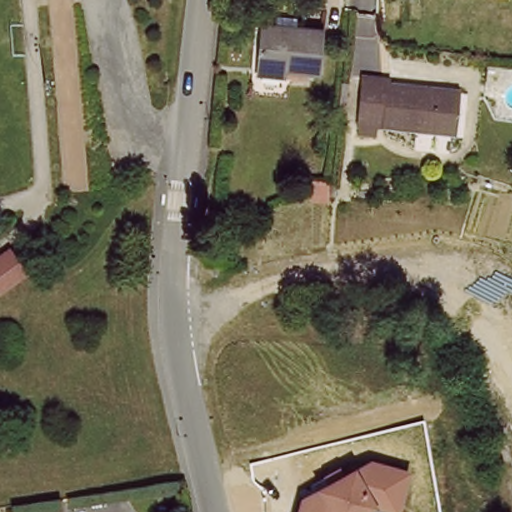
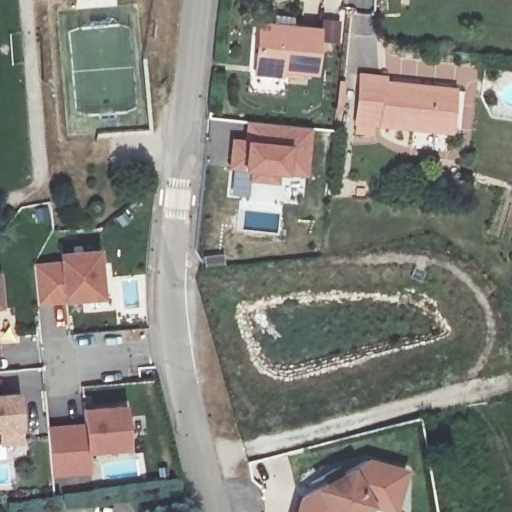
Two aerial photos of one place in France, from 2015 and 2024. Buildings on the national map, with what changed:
unchanged [(257,34),(317,32),(316,74),(286,74),(256,75),(257,34)]
unchanged [(391,80),(390,85),(461,95),(456,134),(361,121),(368,77),(391,80)]
new [(244,139),(247,120),(313,129),(307,178),(281,175),(279,184),(246,180),(246,172),(227,169),(231,139),(244,139)]
new [(59,259),(58,252),(101,248),(104,299),(63,302),(38,306),(35,263),(59,259)]
demolished [(12,253),(27,274),(2,293),(0,290),(0,261),(12,253)]
new [(0,273),(3,310),(0,310),(0,273)]
new [(0,446),(0,395),(17,393),(20,429),(22,444),(0,446)]
new [(89,452),(90,474),(52,478),(48,428),(82,426),(82,409),(124,407),(128,451),(89,452)]
unchanged [(370,463),(408,473),(396,512),(391,512),(373,507),(363,512),(302,512),(305,499),(370,463)]

